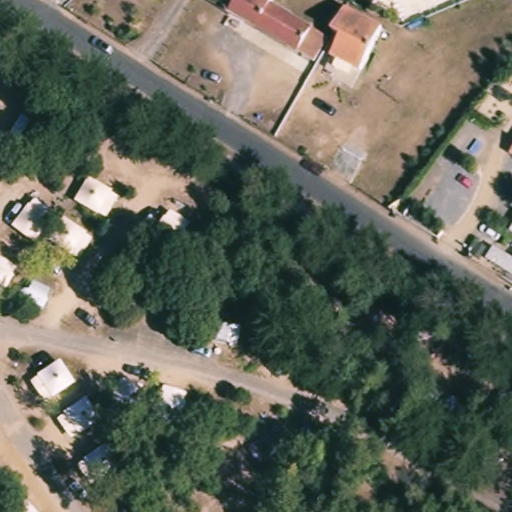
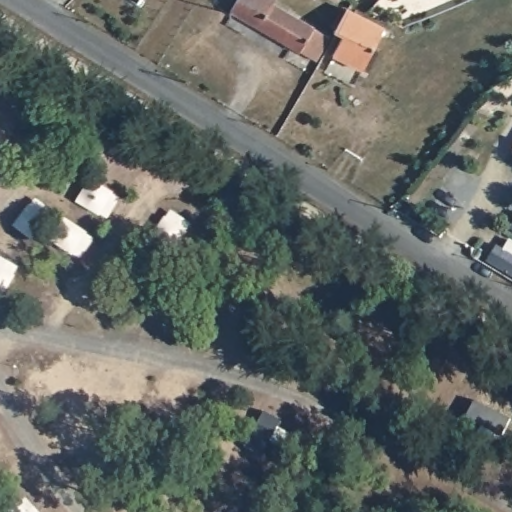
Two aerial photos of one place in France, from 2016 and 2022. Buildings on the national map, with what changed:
unchanged [(334,44),(320,67),(235,17),(245,0),(281,0),(276,9),(334,44)]
unchanged [(366,75),(338,61),(349,41),(343,37),(339,36),(351,14),(388,32),(366,75)]
unchanged [(510,154),(512,151),(512,155),(510,154)]

